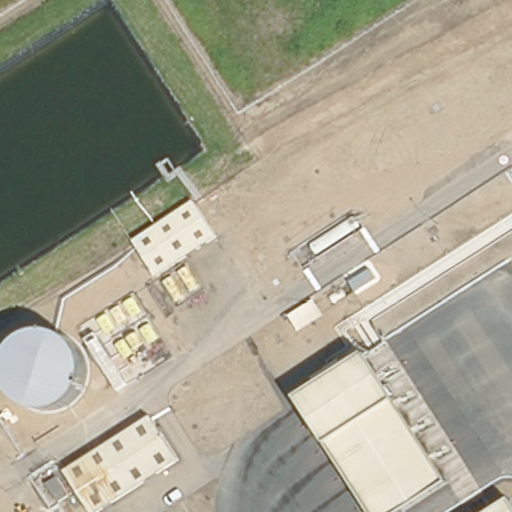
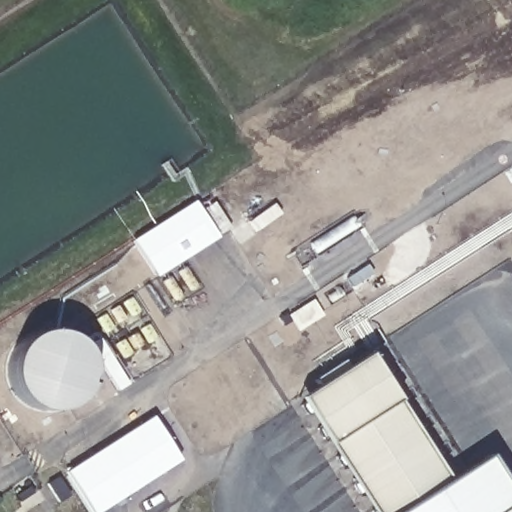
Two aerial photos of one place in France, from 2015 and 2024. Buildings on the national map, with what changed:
unchanged [(214,233),(151,274),(130,240),(192,199),(214,233)]
unchanged [(393,512),(375,512),(300,396),(372,348),(455,473),(393,512)]
unchanged [(155,415),(184,459),(110,505),(100,512),(93,512),(67,472),(155,415)]
new [(455,473),(485,454),(512,497),(512,500),(507,502),(505,498),(484,512),(393,512),(455,473)]
unchanged [(507,502),(512,509),(512,512),(484,512),(505,498),(507,502)]

